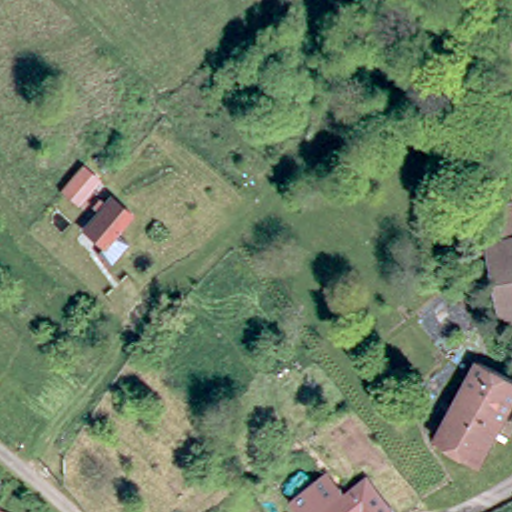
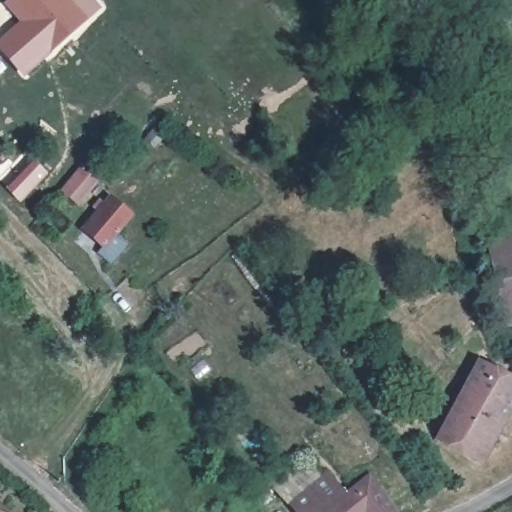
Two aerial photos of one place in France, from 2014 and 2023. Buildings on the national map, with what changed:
new [(0,51),(0,39),(20,21),(3,3),(6,0),(94,0),(100,8),(25,78),(0,51)]
unchanged [(78,205),(60,189),(82,165),(101,181),(78,205)]
unchanged [(132,215),(105,250),(80,228),(107,193),(132,215)]
unchanged [(504,307),(487,233),(512,229),(512,306),(504,307)]
unchanged [(438,430),(467,382),(481,355),(512,371),(512,409),(484,458),(438,430)]
unchanged [(394,512),(301,512),(292,502),(332,471),(346,489),(365,476),(394,512)]
unchanged [(0,512),(0,510),(5,512),(0,512)]

